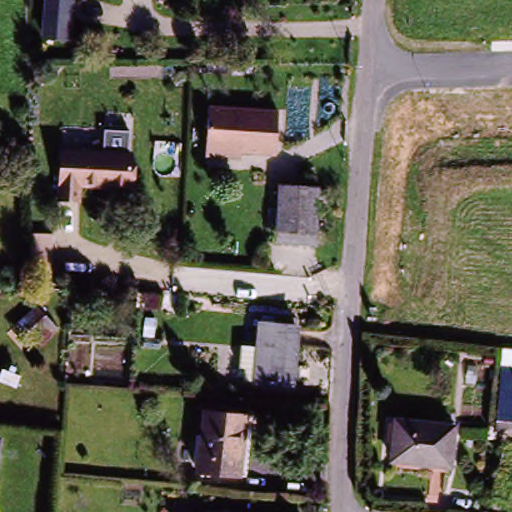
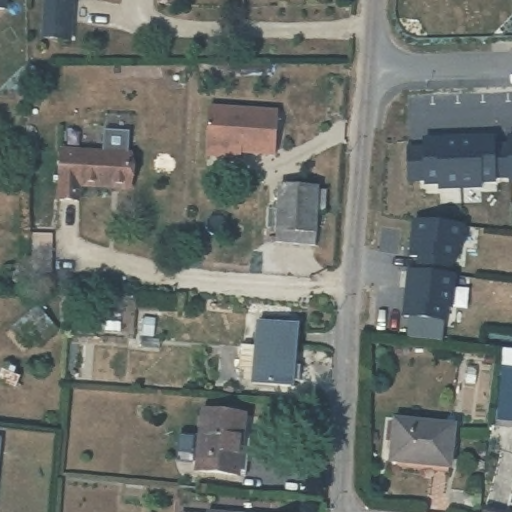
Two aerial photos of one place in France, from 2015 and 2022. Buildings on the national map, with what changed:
new [(0,9),(0,0),(4,0),(4,10),(0,9)]
unchanged [(74,21),(65,22),(64,43),(40,43),(42,0),(75,0),(74,21)]
unchanged [(276,108),(272,148),(230,145),(230,154),(207,153),(210,104),(276,108)]
new [(509,137),(512,137),(512,183),(510,183),(509,145),(509,137)]
new [(510,178),(495,178),(495,183),(481,183),(481,188),(461,189),(460,139),(494,138),(494,146),(510,145),(510,178)]
new [(461,189),(441,190),(441,185),(427,185),(427,181),(410,181),(410,149),(425,148),(425,140),(460,139),(461,189)]
unchanged [(147,192),(146,192),(144,192),(97,189),(96,204),(76,203),(80,153),(98,154),(149,157),(147,192)]
unchanged [(323,182),(318,227),(317,239),(278,236),(279,224),(282,180),(323,182)]
new [(461,244),(456,243),(455,257),(451,257),(450,272),(417,268),(419,254),(411,253),(415,218),(464,223),(461,244)]
new [(455,272),(451,303),(446,303),(445,317),(443,317),(441,337),(409,334),(411,313),(405,312),(410,268),(418,268),(455,272)]
unchanged [(36,306),(54,327),(25,352),(7,333),(36,306)]
unchanged [(241,355),(256,355),(257,329),(299,332),(296,389),(254,387),(240,386),(241,355)]
unchanged [(243,416),(239,473),(196,469),(200,414),(243,416)]
unchanged [(447,433),(444,470),(388,465),(391,428),(447,433)]
unchanged [(218,512),(218,510),(236,512),(218,512)]

